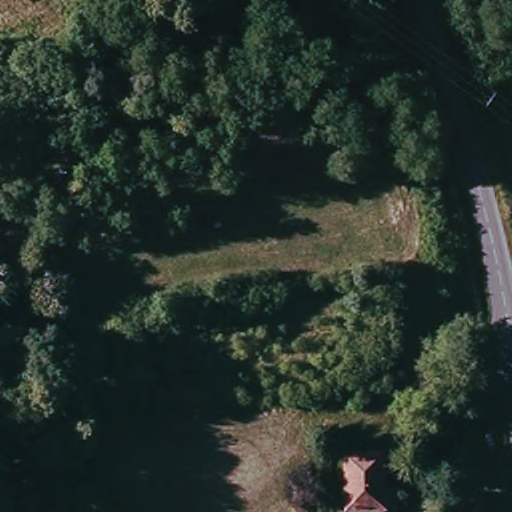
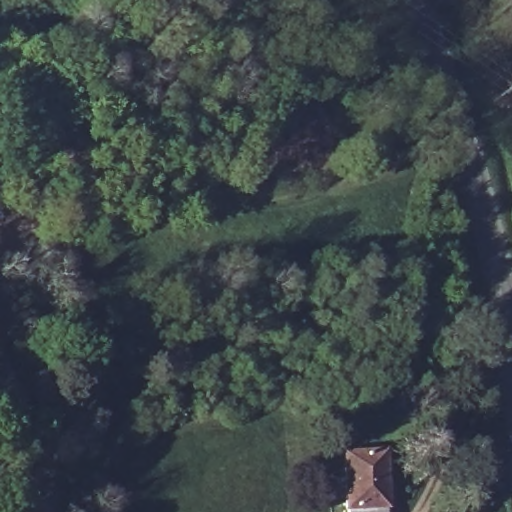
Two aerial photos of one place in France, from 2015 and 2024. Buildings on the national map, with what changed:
unchanged [(355,451),(393,450),(395,497),(390,497),(390,512),(356,512),(355,451)]
unchanged [(458,495),(480,493),(481,512),(459,512),(458,495)]

